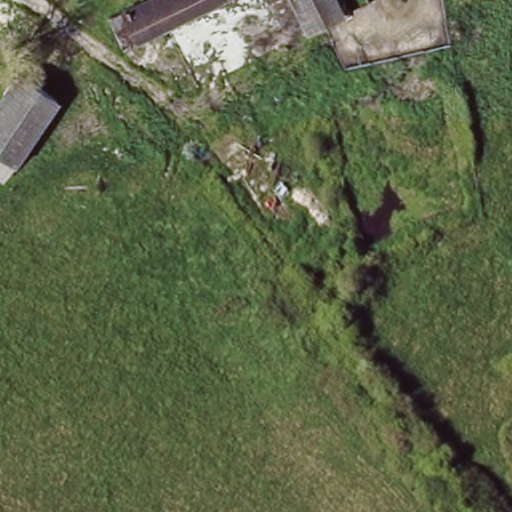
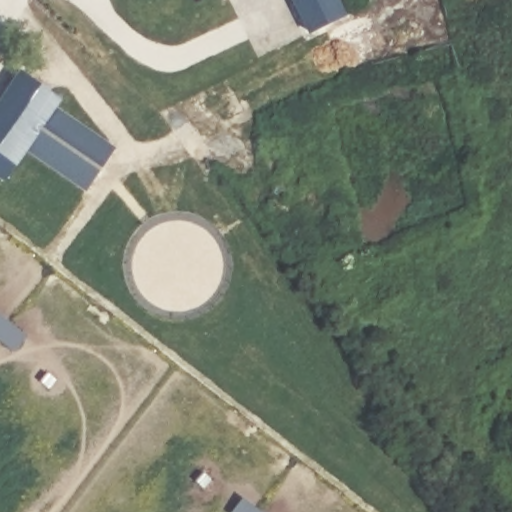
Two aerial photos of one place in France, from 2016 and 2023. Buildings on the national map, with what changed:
demolished [(91,7),(88,0),(103,0),(91,7)]
demolished [(109,27),(164,0),(236,0),(168,36),(125,59),(109,27)]
unchanged [(344,16),(305,35),(288,0),(336,0),(344,16)]
unchanged [(23,75),(65,102),(22,157),(0,141),(0,106),(23,75)]
new [(83,192),(27,151),(58,110),(115,147),(83,192)]
unchanged [(4,181),(0,178),(0,141),(22,157),(4,181)]

